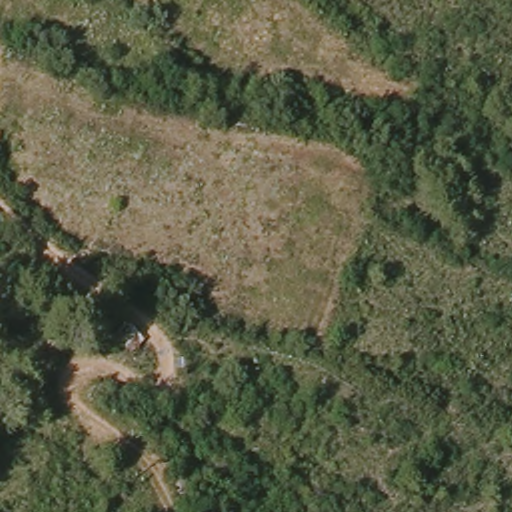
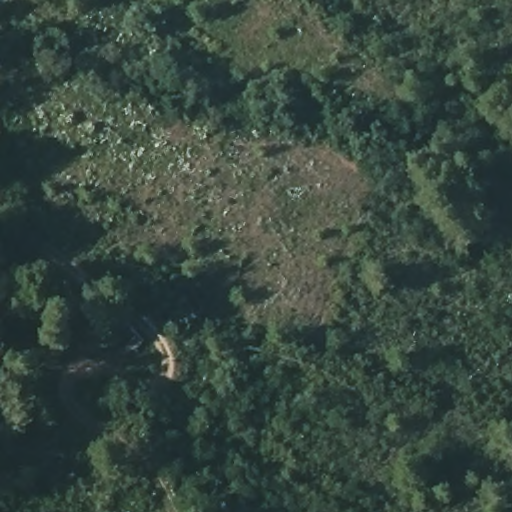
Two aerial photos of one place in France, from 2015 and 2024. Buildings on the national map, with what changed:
unchanged [(132,354),(114,338),(128,321),(145,336),(132,354)]

